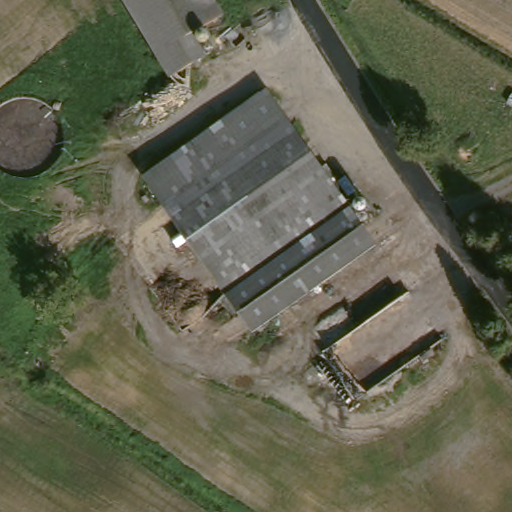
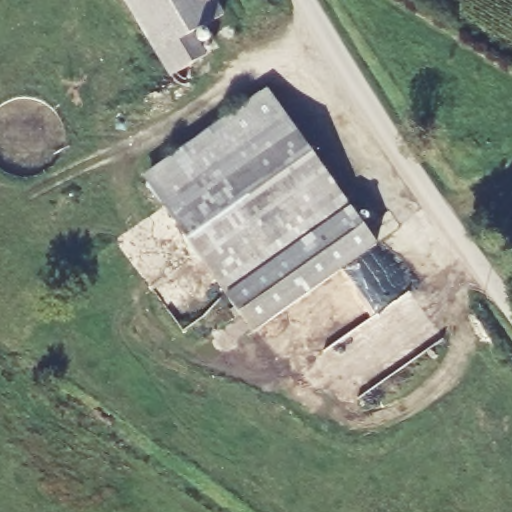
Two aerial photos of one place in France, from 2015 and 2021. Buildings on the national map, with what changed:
unchanged [(196,33),(208,54),(173,76),(127,0),(217,0),(226,14),(196,33)]
unchanged [(170,204),(151,175),(273,92),(292,118),(170,204)]
unchanged [(378,240),(252,325),(170,204),(292,118),(378,240)]

